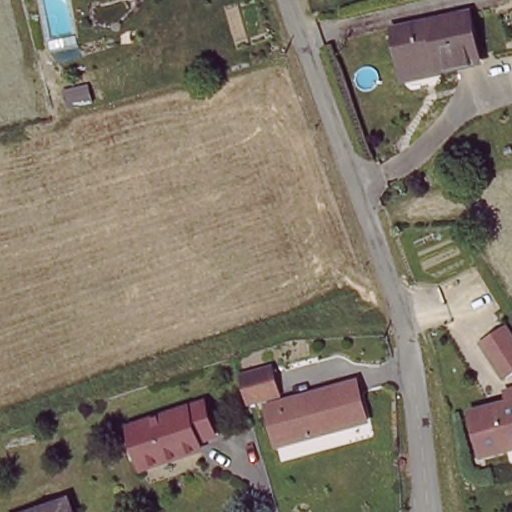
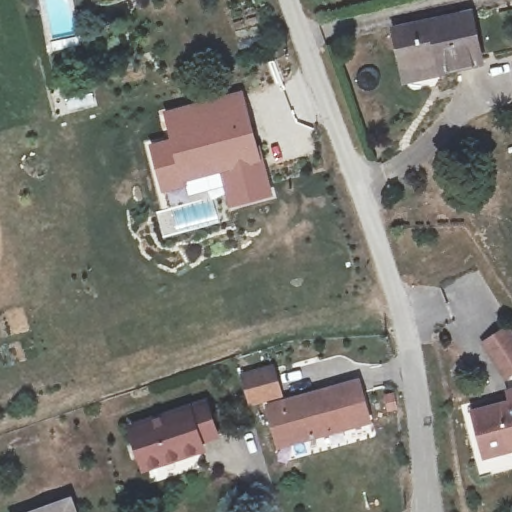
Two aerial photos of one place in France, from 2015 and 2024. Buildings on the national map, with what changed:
unchanged [(465,15),(480,62),(442,74),(437,62),(405,72),(394,33),(465,15)]
new [(170,138),(163,112),(241,91),(274,197),(229,207),(220,173),(188,182),(189,186),(163,192),(150,145),(170,138)]
unchanged [(502,382),(479,343),(510,326),(512,329),(512,377),(502,382)]
unchanged [(265,402),(246,409),(239,376),(277,366),(286,397),(265,402)]
unchanged [(331,390),(349,386),(360,425),(342,429),(268,449),(258,407),(331,390)]
unchanged [(204,399),(216,440),(200,445),(204,452),(148,467),(134,419),(204,399)]
unchanged [(479,455),(467,411),(512,399),(512,446),(479,455)]
unchanged [(72,512),(47,512),(71,505),(72,512)]

